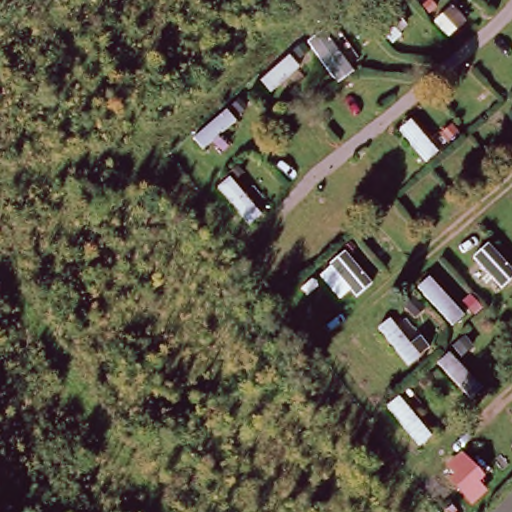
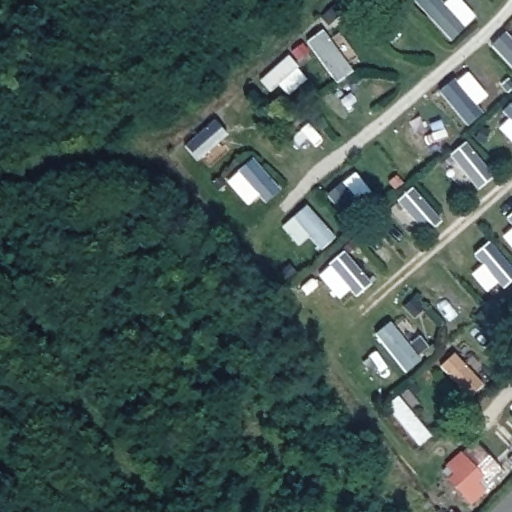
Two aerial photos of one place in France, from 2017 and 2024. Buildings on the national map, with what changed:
unchanged [(470,506),(446,480),(452,475),(445,466),(460,453),(484,478),(478,483),(486,492),(470,506)]

